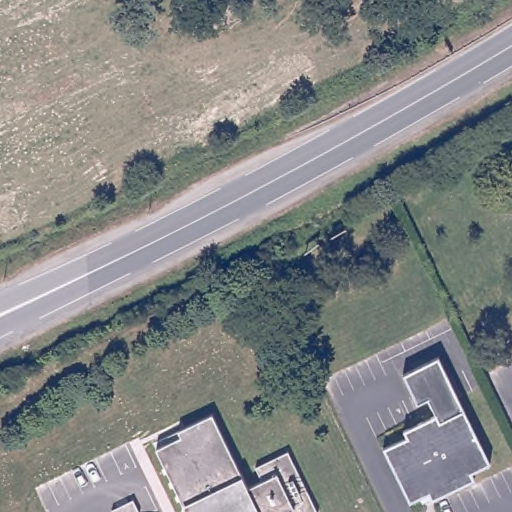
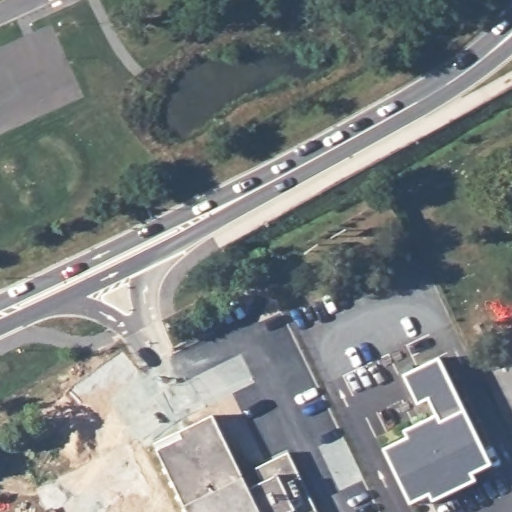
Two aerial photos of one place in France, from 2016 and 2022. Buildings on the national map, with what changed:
unchanged [(441,361),(497,468),(476,479),(478,486),(435,505),(432,500),(414,508),(383,451),(408,440),(405,431),(436,416),(428,401),(418,406),(406,379),(441,361)]
unchanged [(210,414),(246,488),(258,482),(253,469),(289,452),(318,512),(184,512),(151,443),(210,414)]
unchanged [(112,512),(110,510),(132,499),(139,512),(112,512)]

